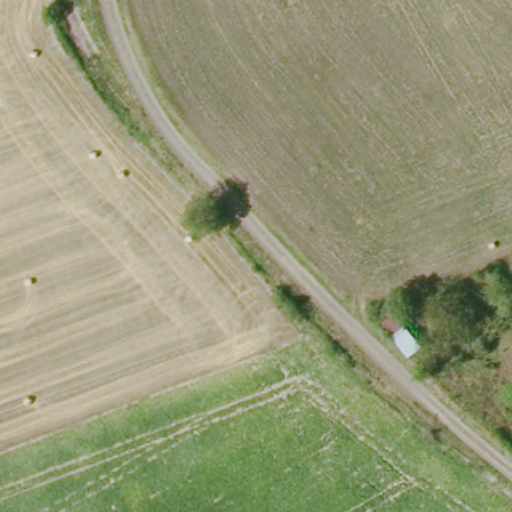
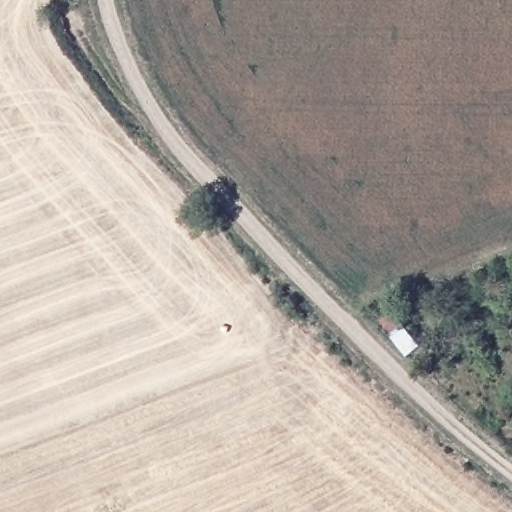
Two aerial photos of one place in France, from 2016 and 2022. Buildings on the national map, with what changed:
unchanged [(402,310),(412,321),(410,324),(432,347),(415,358),(384,323),(402,310)]

